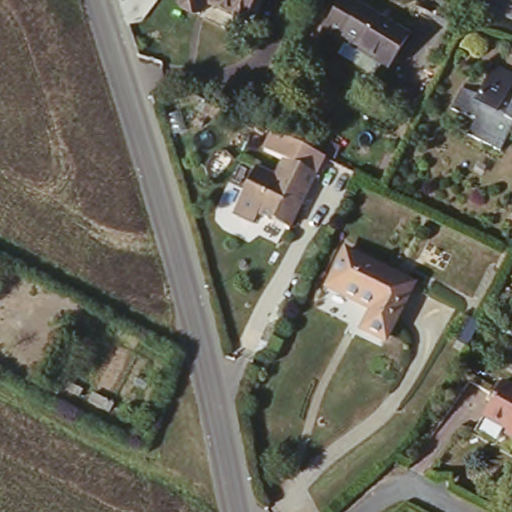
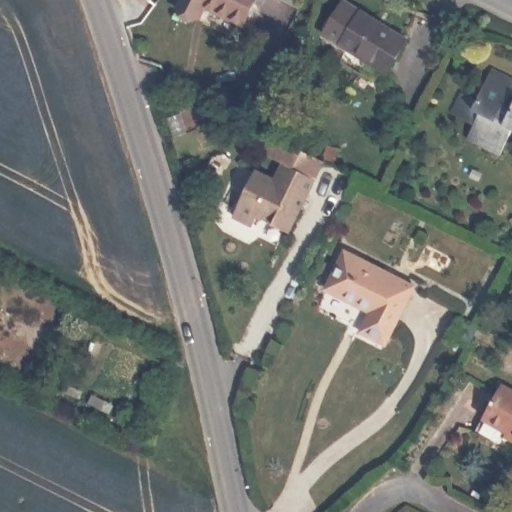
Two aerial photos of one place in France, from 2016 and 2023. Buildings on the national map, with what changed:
unchanged [(199,10),(176,0),(205,0),(199,10)]
unchanged [(243,17),(208,0),(253,0),(243,17)]
unchanged [(416,40),(394,80),(313,38),(338,0),(353,0),(416,40)]
unchanged [(496,96),(508,72),(512,74),(512,155),(496,146),(501,132),(492,127),(489,130),(462,115),(475,87),(496,96)]
unchanged [(274,224),(254,214),(249,224),(229,214),(252,166),(273,177),(282,160),(314,176),(290,225),(287,230),(274,224)]
unchanged [(336,256),(407,282),(390,345),(362,335),(369,315),(322,297),(336,256)]
unchanged [(512,393),(512,444),(499,437),(501,433),(480,421),(497,385),(512,393)]

